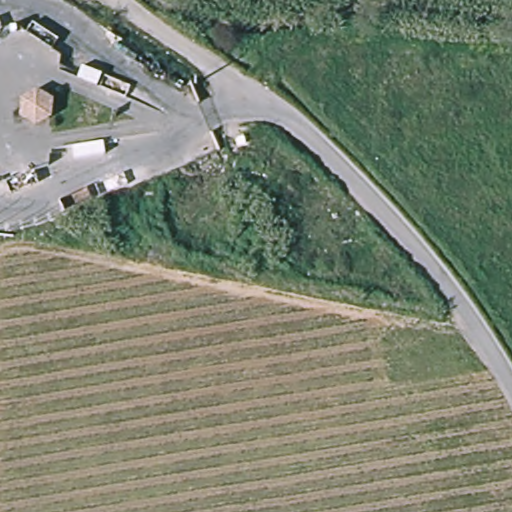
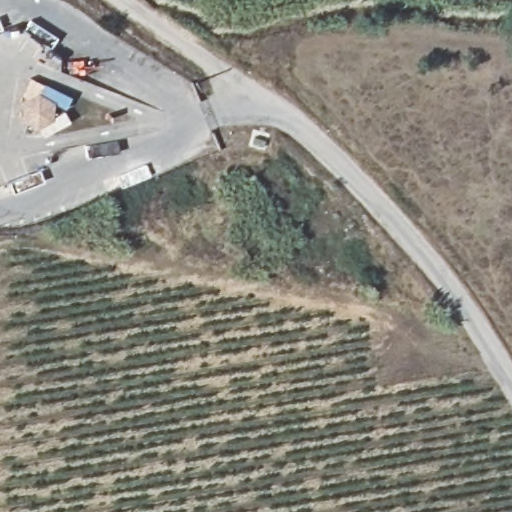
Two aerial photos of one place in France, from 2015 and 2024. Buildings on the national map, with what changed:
unchanged [(43,90),(47,94),(50,99),(49,113),(45,118),(40,121),(35,121),(30,119),(27,110),(28,99),(31,92),(34,89),(40,89),(43,90)]

